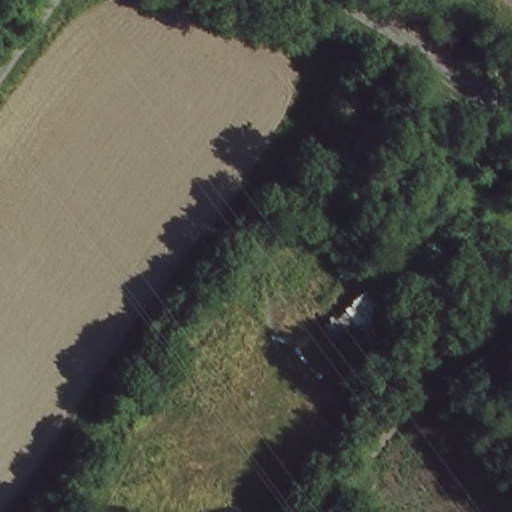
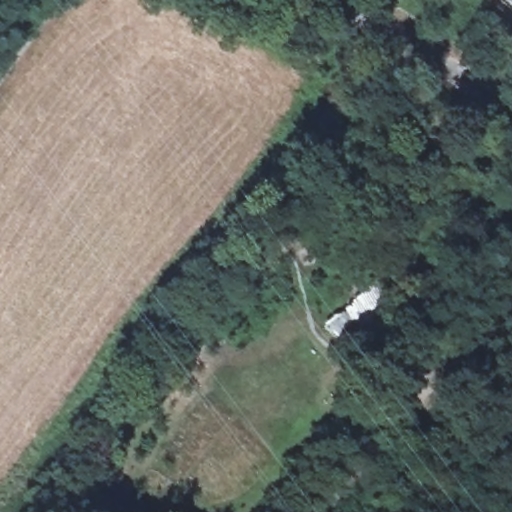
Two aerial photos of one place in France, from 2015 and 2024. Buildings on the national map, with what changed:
unchanged [(351,352),(328,320),(378,280),(404,315),(351,352)]

